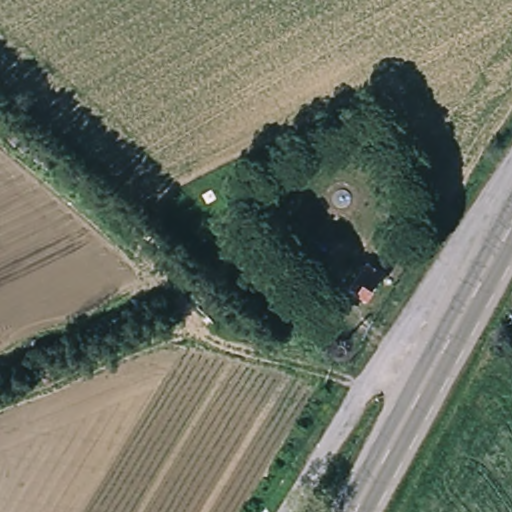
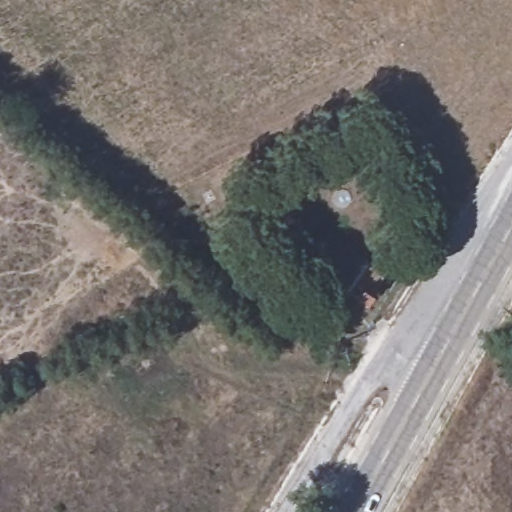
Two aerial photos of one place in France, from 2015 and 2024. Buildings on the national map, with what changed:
unchanged [(373,295),(357,285),(372,262),(387,273),(373,295)]

